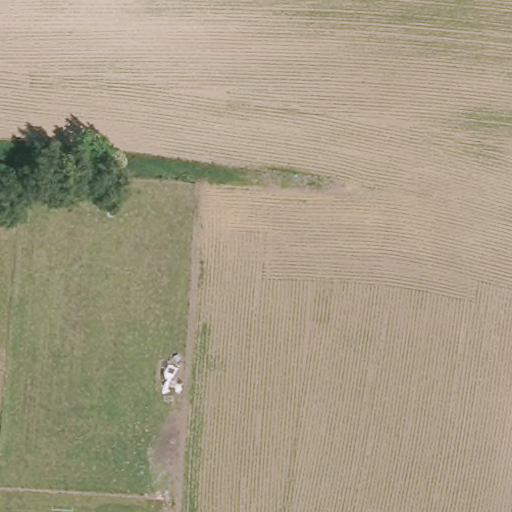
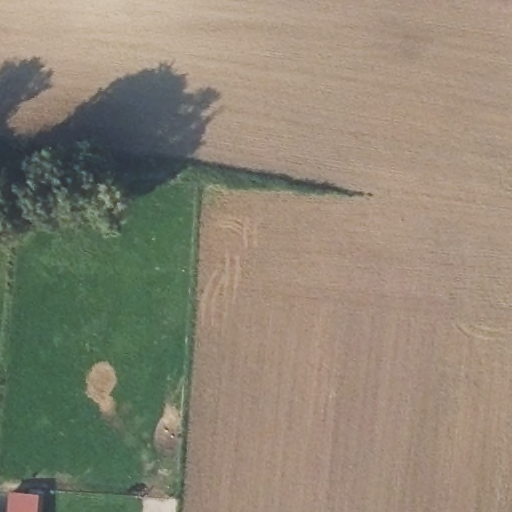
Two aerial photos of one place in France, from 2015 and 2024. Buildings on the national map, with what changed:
new [(43,496),(42,512),(7,512),(8,494),(43,496)]

